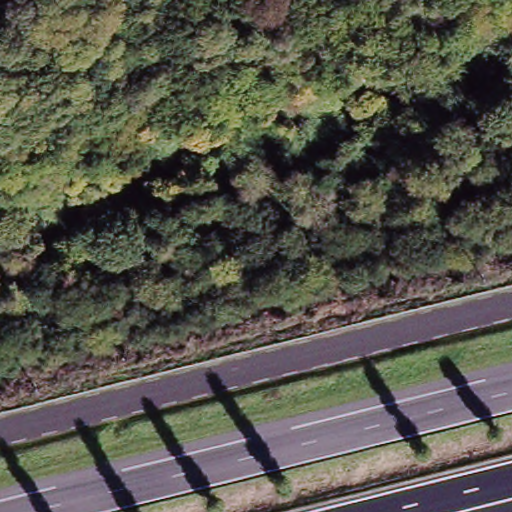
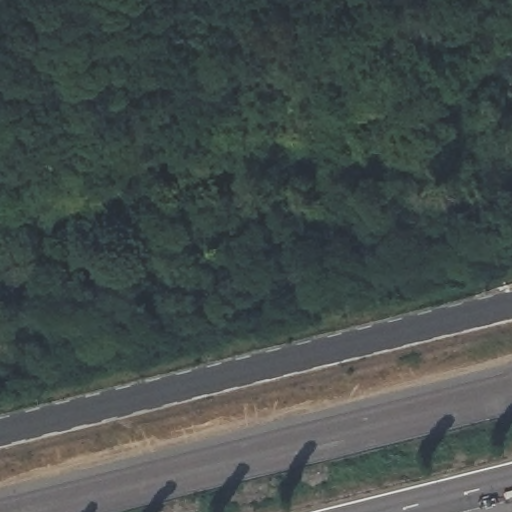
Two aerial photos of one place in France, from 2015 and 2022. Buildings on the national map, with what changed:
[]

